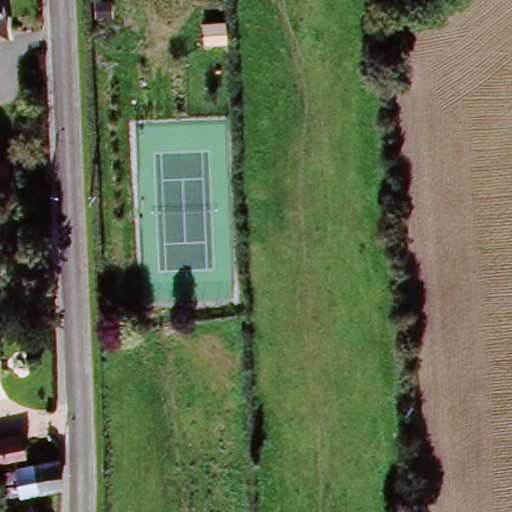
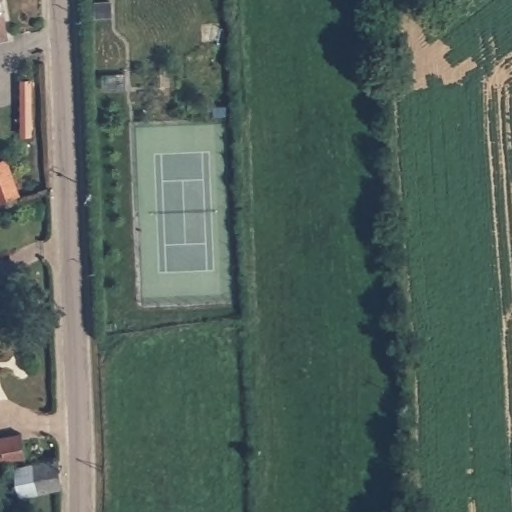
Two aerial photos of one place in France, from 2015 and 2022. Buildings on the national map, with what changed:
unchanged [(0,38),(0,10),(6,36),(0,38)]
unchanged [(0,197),(0,168),(2,167),(17,197),(4,206),(0,197)]
unchanged [(0,351),(0,333),(5,349),(0,351)]
unchanged [(0,465),(0,438),(22,433),(28,459),(0,465)]
unchanged [(15,494),(10,468),(62,460),(67,488),(15,494)]

